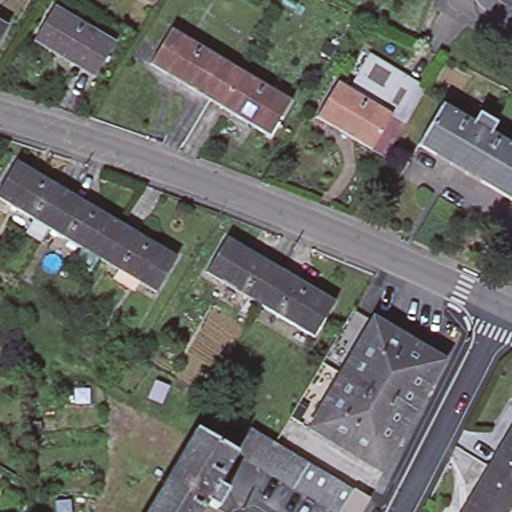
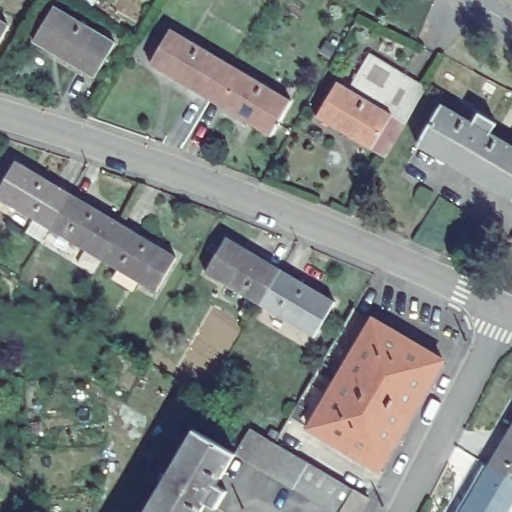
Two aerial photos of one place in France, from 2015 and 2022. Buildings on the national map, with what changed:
unchanged [(59,6),(120,43),(99,78),(38,41),(59,6)]
unchanged [(0,40),(0,22),(8,26),(0,40)]
unchanged [(230,65),(210,99),(150,64),(170,29),(230,65)]
unchanged [(400,68),(379,102),(350,84),(370,51),(400,68)]
unchanged [(290,101),(270,135),(210,99),(230,65),(290,101)]
unchanged [(405,118),(379,102),(400,68),(426,83),(405,118)]
unchanged [(385,152),(372,143),(370,146),(316,112),(337,78),(350,84),(379,102),(405,118),(385,152)]
unchanged [(512,201),(420,145),(419,146),(417,145),(442,104),(443,105),(442,106),(472,124),(479,113),(497,124),(490,134),(512,147),(512,201)]
unchanged [(26,227),(34,214),(0,194),(0,183),(15,156),(70,189),(122,220),(102,254),(50,223),(42,236),(26,227)]
unchanged [(114,273),(119,264),(102,254),(122,220),(177,253),(157,287),(141,278),(136,285),(114,273)]
unchanged [(260,304),(207,273),(227,239),(280,270),(260,304)]
unchanged [(335,303),(314,337),(260,304),(280,270),(335,303)]
unchanged [(373,314),(444,356),(379,466),(312,425),(373,314)]
unchanged [(489,462),(512,423),(512,500),(505,512),(459,512),(489,462)]
unchanged [(220,479),(236,453),(247,461),(259,468),(260,468),(270,474),(282,481),(294,488),(305,494),(317,502),(328,509),(334,512),(277,512),(267,507),(255,499),(244,493),(232,486),(221,479),(220,481),(219,480),(202,510),(205,512),(147,512),(180,457),(179,457),(180,455),(220,479)]

